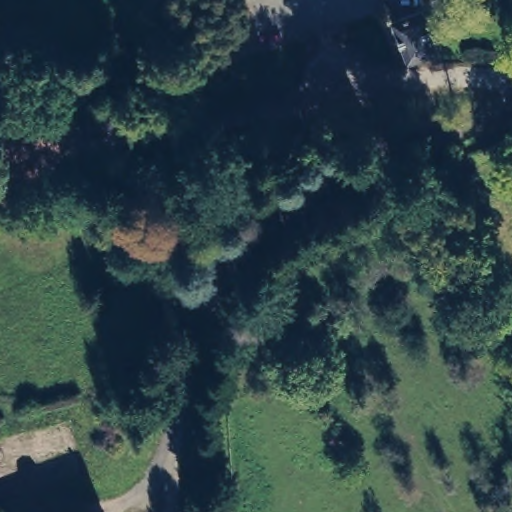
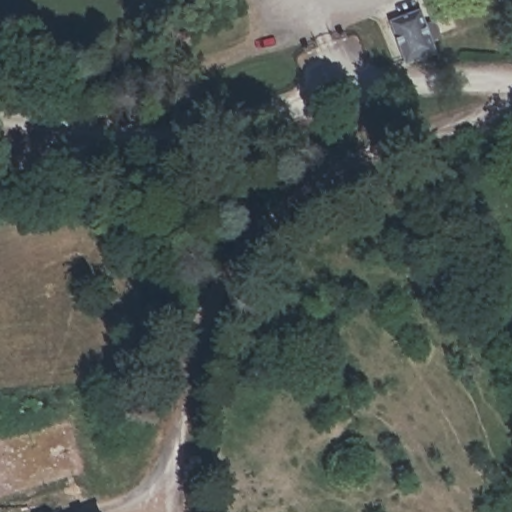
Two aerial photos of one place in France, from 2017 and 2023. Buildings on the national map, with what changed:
unchanged [(407,51),(394,12),(423,1),(439,43),(408,54),(407,51)]

